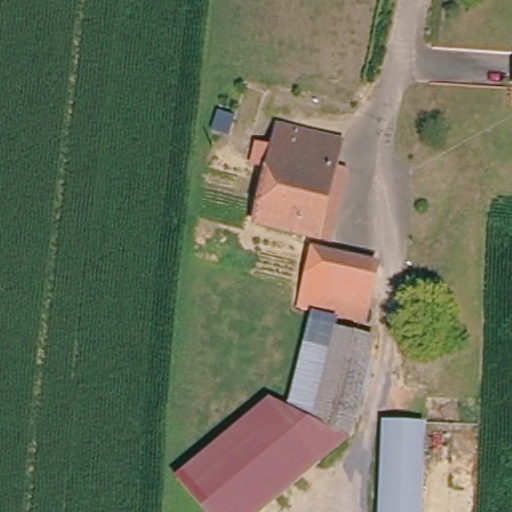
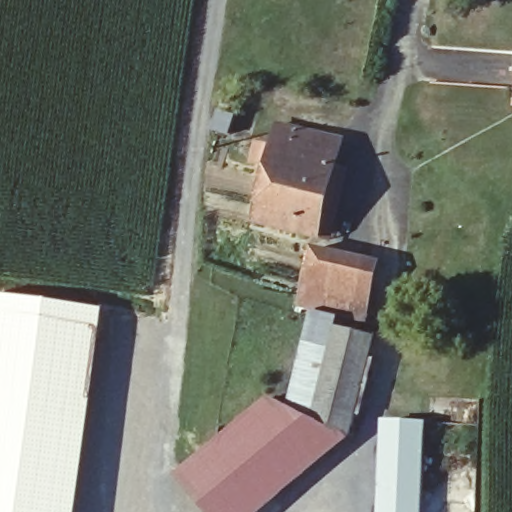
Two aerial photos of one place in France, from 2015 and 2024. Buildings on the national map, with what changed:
demolished [(250,142),(229,135),(246,85),(266,91),(250,142)]
unchanged [(335,168),(318,237),(255,221),(272,154),(279,125),(341,140),(335,168)]
unchanged [(331,240),(319,237),(335,169),(348,171),(331,240)]
unchanged [(356,305),(380,311),(376,329),(358,325),(298,311),(312,252),(365,265),(356,305)]
unchanged [(380,311),(356,305),(365,265),(390,270),(380,311)]
new [(103,309),(79,503),(77,512),(0,512),(0,295),(103,309)]
unchanged [(206,512),(182,480),(171,466),(182,457),(269,392),(293,407),(314,323),(335,328),(311,425),(317,427),(350,435),(247,512),(206,512)]
unchanged [(366,368),(360,395),(350,435),(317,427),(311,425),(335,328),(360,335),(374,337),(366,368)]
unchanged [(380,512),(389,425),(398,426),(431,430),(423,512),(380,512)]

